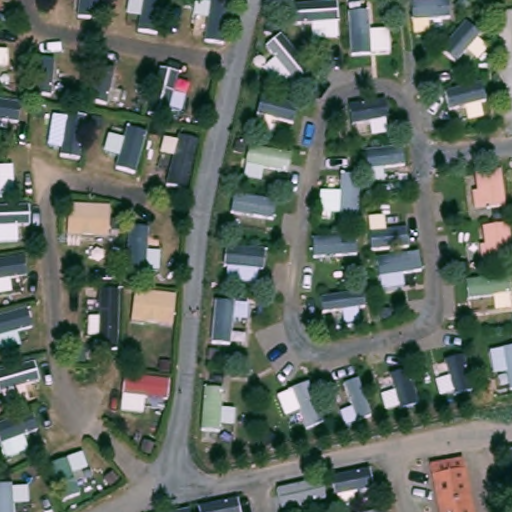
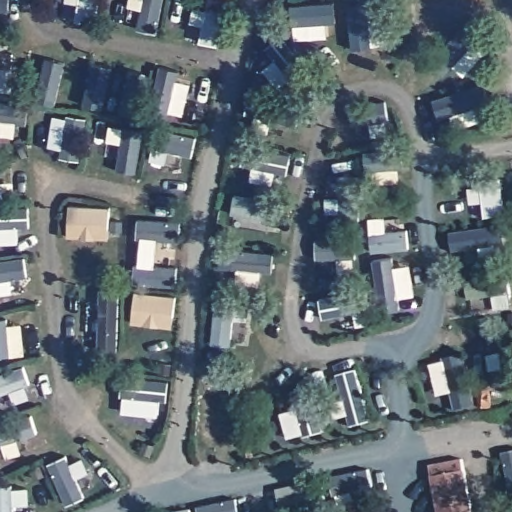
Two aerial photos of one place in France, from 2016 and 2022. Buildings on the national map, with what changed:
unchanged [(112,207),(110,242),(70,238),(72,204),(112,207)]
unchanged [(136,290),(179,296),(175,330),(133,325),(136,290)]
unchanged [(125,378),(172,380),(168,402),(148,400),(146,418),(121,414),(125,378)]
unchanged [(430,473),(464,463),(472,491),(438,500),(430,473)]
unchanged [(477,512),(441,512),(438,500),(472,491),(477,512)]

